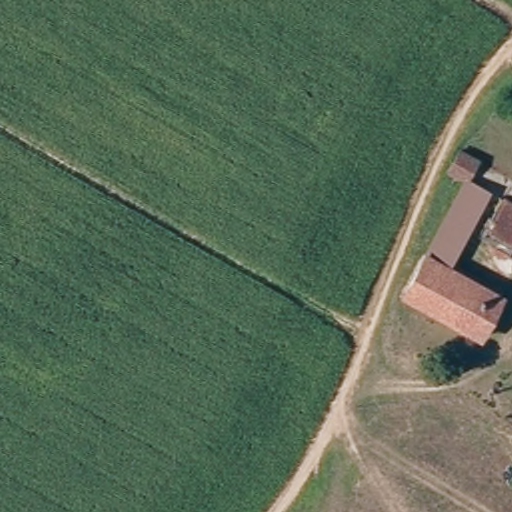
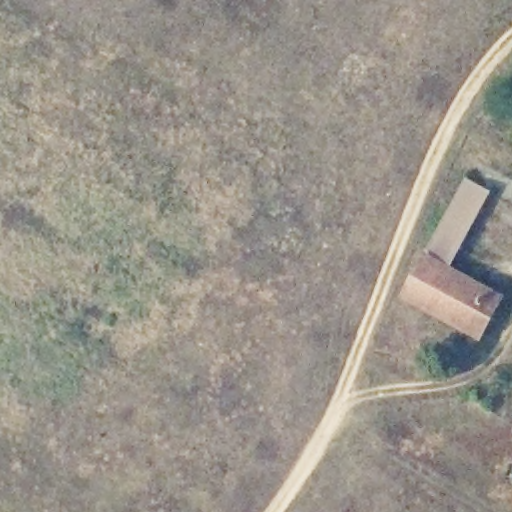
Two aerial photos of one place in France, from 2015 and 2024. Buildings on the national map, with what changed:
unchanged [(464,181),(443,169),(453,150),(473,163),(464,181)]
unchanged [(512,207),(512,258),(477,239),(460,271),(502,295),(471,351),(457,344),(463,330),(423,308),(404,294),(464,181),(512,207)]

